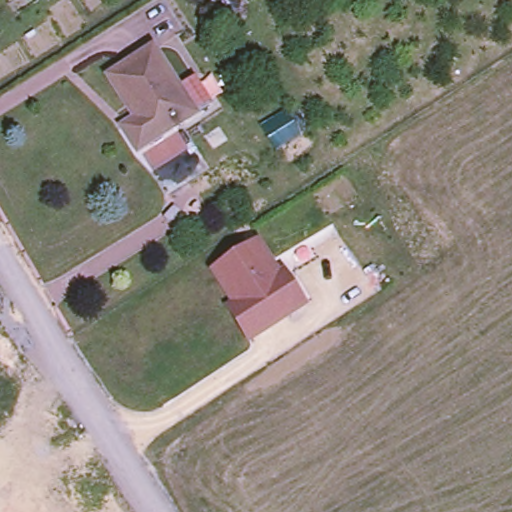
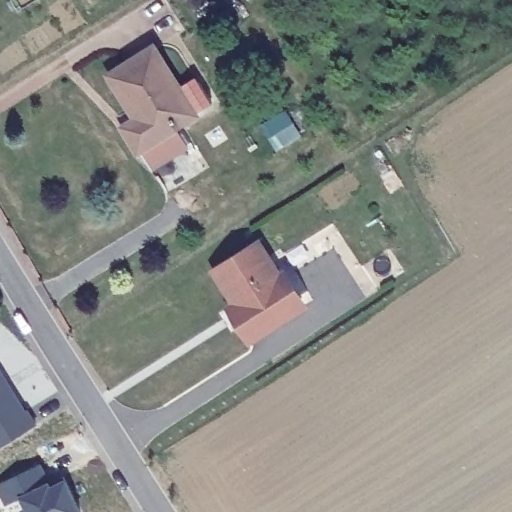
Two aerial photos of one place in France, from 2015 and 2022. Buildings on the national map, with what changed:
unchanged [(155,59),(182,98),(198,87),(200,89),(212,107),(195,118),(137,155),(125,137),(125,135),(139,125),(113,85),(110,80),(152,54),(155,59)]
new [(142,153),(177,130),(188,149),(152,170),(142,153)]
unchanged [(255,245),(267,264),(296,311),(245,343),(227,311),(232,308),(223,292),(211,273),(255,245)]
new [(0,383),(5,389),(9,387),(23,410),(26,409),(35,424),(0,446),(0,372),(5,379),(0,383)]
new [(49,487),(65,479),(78,512),(25,512),(20,500),(5,506),(0,494),(0,485),(41,466),(49,487)]

